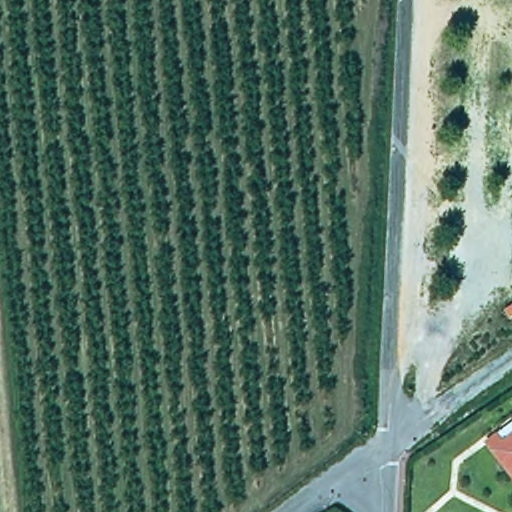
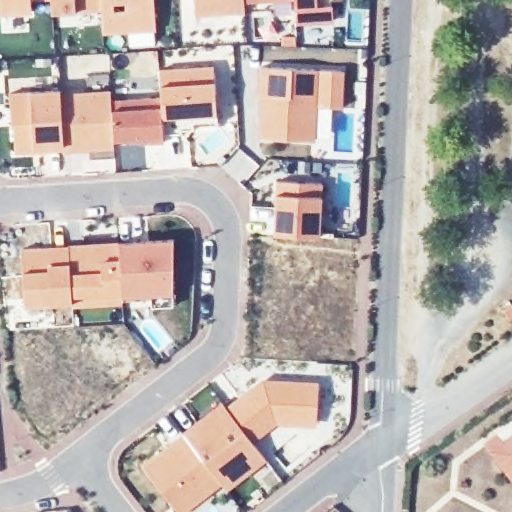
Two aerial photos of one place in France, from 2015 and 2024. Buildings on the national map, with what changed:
new [(32,0),(33,12),(0,15),(0,0),(41,0),(32,0)]
new [(103,35),(101,10),(76,13),(52,15),(51,0),(155,0),(157,31),(103,35)]
new [(244,2),(245,13),(195,16),(194,0),(284,0),(244,2)]
new [(332,0),(335,21),(296,25),(295,10),(294,0),(338,0),(332,0)]
new [(215,81),(217,112),(217,124),(193,126),(194,129),(180,130),(180,134),(164,134),(165,143),(150,144),(150,138),(114,140),(114,149),(65,152),(65,150),(15,154),(13,127),(11,127),(9,92),(30,90),(60,89),(62,92),(110,89),(112,100),(161,96),(160,84),(160,68),(214,66),(215,81)]
new [(343,108),(332,108),(330,137),(317,137),(317,141),(259,138),(261,96),(258,96),(260,66),(344,70),(343,108)]
new [(322,196),(320,237),(273,234),(275,193),(277,180),(322,183),(322,196)]
new [(175,291),(172,305),(152,306),(152,296),(123,298),(123,305),(73,308),(73,303),(25,306),(22,270),(24,270),(22,248),(120,241),(173,238),(175,291)]
new [(277,425),(255,443),(268,459),(227,491),(222,484),(186,512),(178,512),(142,465),(182,433),(182,432),(222,401),(226,407),(262,378),(319,381),(317,427),(277,425)]
unchanged [(486,444),(497,436),(503,443),(512,436),(512,478),(486,444)]

